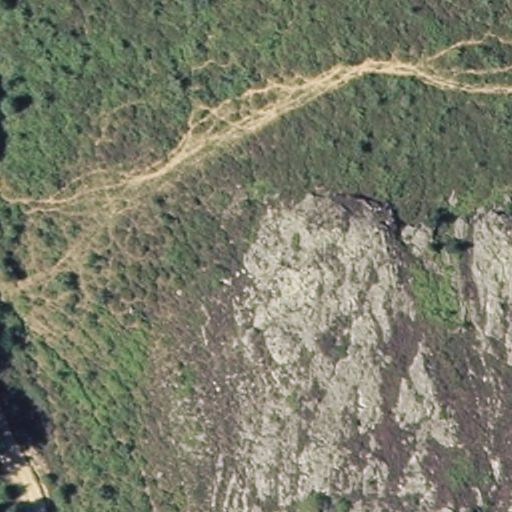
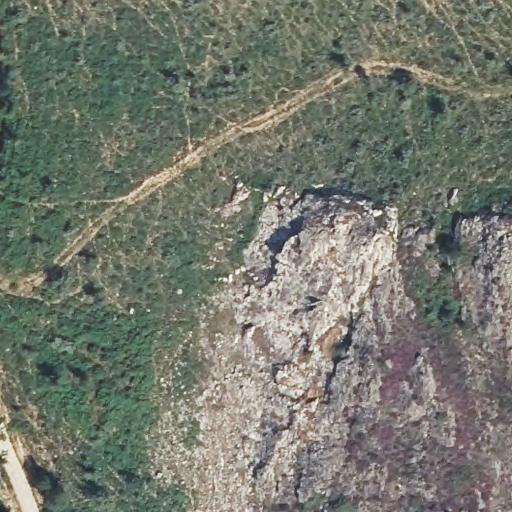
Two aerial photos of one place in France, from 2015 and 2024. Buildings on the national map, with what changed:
[]

